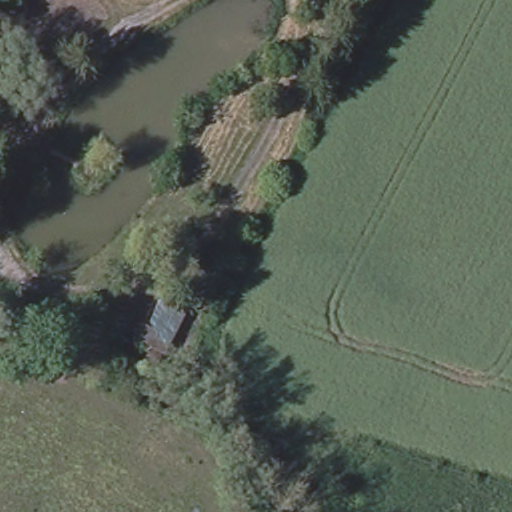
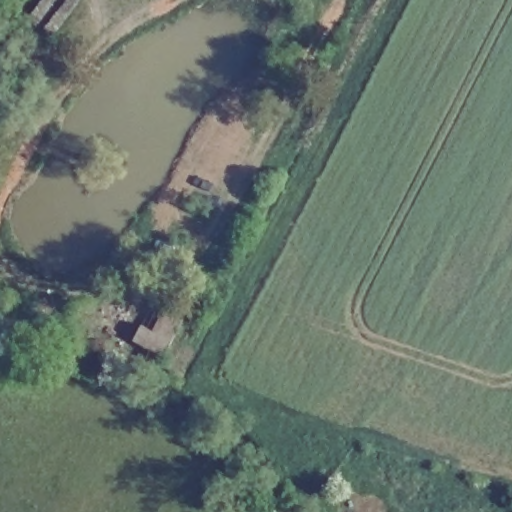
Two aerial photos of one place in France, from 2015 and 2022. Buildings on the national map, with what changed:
unchanged [(161,357),(128,344),(137,323),(150,328),(162,305),(182,316),(161,357)]

